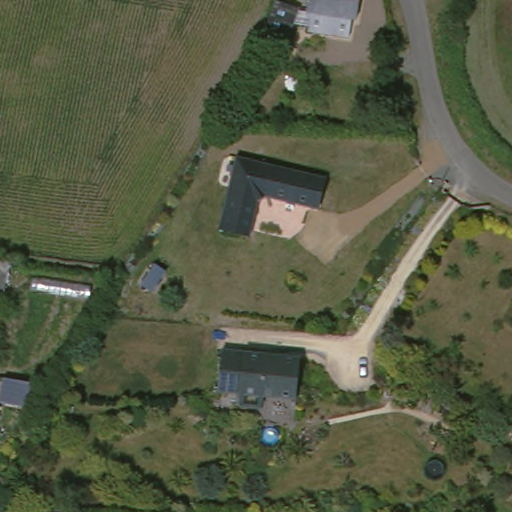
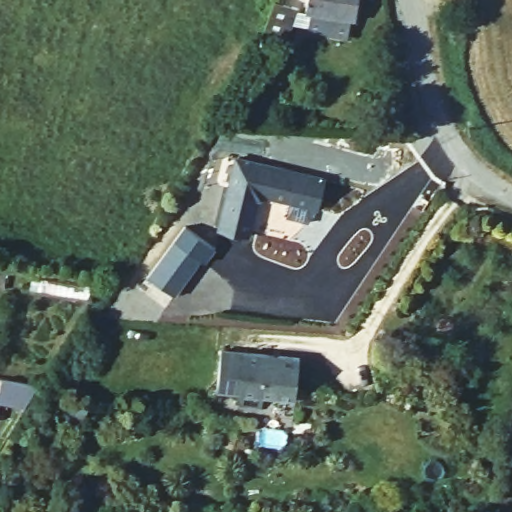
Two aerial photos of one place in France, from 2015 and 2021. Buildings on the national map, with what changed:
unchanged [(318,22),(319,1),(310,0),(356,0),(356,22),(318,22)]
unchanged [(303,5),(295,35),(276,30),(286,2),(303,5)]
unchanged [(313,213),(255,199),(244,240),(216,232),(230,178),(223,176),(225,170),(231,172),(233,164),(320,185),(313,213)]
new [(203,258),(176,295),(148,275),(174,240),(203,258)]
unchanged [(215,349),(293,354),(290,395),(258,393),(257,406),(233,405),(234,392),(212,390),(215,349)]
unchanged [(49,384),(38,403),(18,399),(22,380),(22,379),(49,384)]

